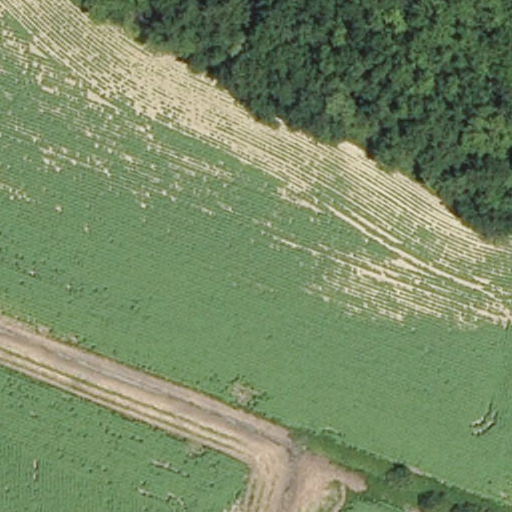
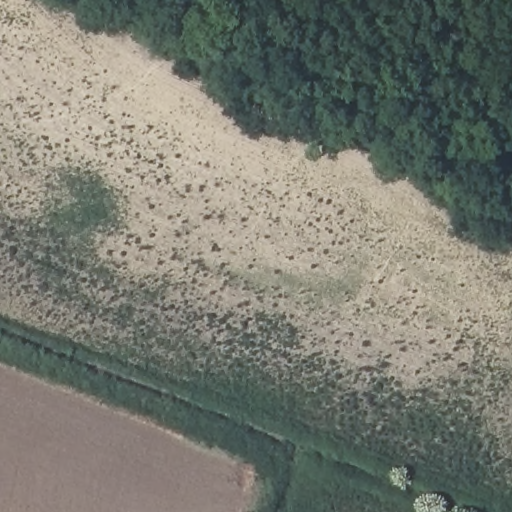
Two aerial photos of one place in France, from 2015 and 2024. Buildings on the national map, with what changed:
[]

